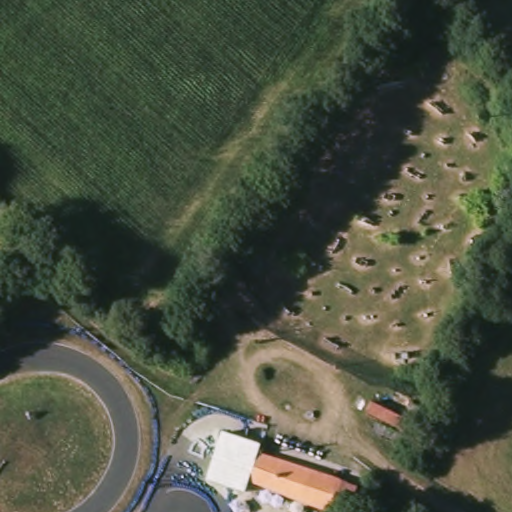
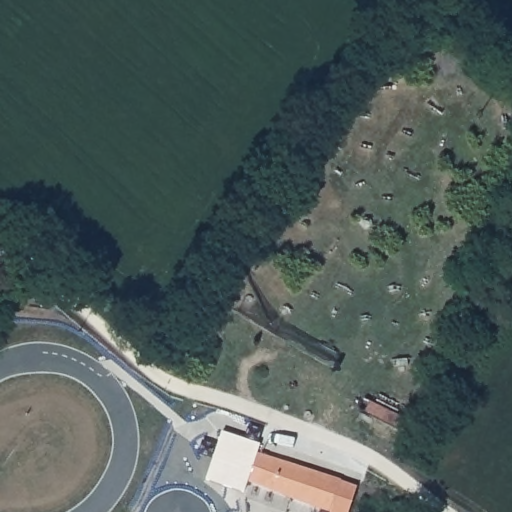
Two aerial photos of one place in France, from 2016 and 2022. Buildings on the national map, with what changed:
unchanged [(246,490),(208,478),(223,431),(261,442),(258,453),(250,478),(246,490)]
unchanged [(333,505),(250,478),(258,453),(357,486),(348,512),(331,512),(333,505)]

